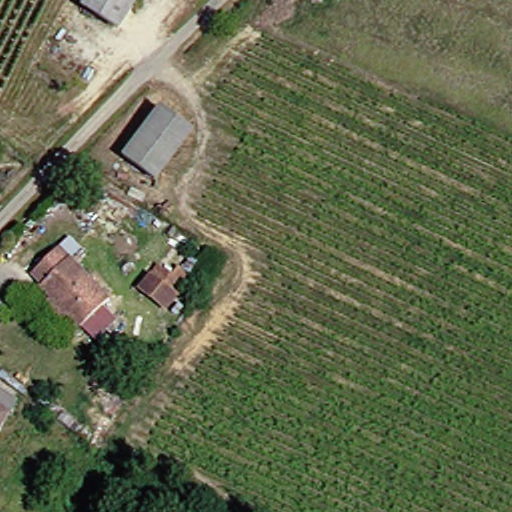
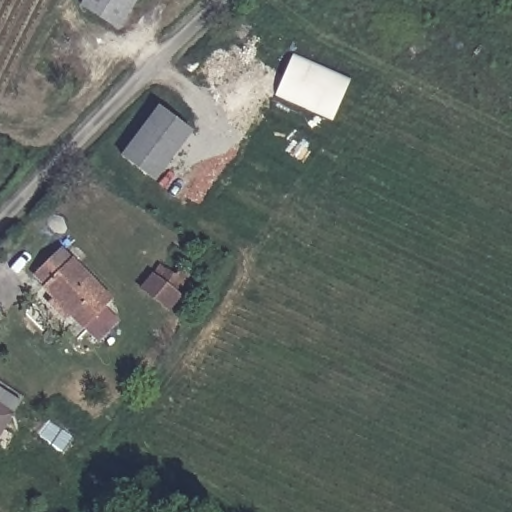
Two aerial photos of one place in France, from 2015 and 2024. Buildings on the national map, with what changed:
unchanged [(83,0),(133,0),(115,24),(83,0)]
new [(333,121),(275,96),(292,54),(350,79),(333,121)]
unchanged [(117,153),(155,105),(189,133),(150,181),(117,153)]
unchanged [(50,317),(57,309),(46,299),(50,294),(35,280),(61,250),(115,300),(85,335),(76,327),(69,335),(50,317)]
unchanged [(170,291),(175,299),(164,313),(135,288),(156,266),(169,279),(182,261),(191,267),(170,291)]
unchanged [(0,419),(0,399),(10,405),(0,419)]

